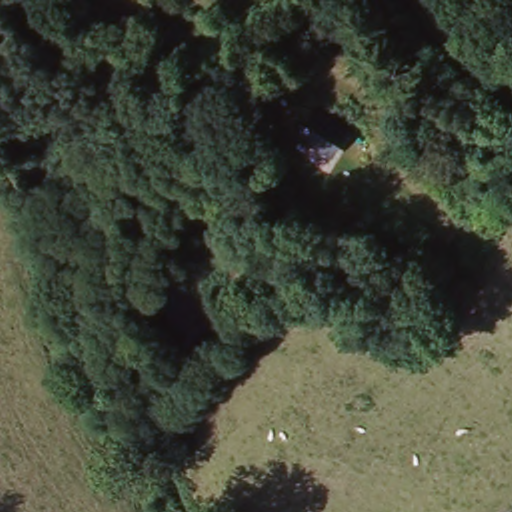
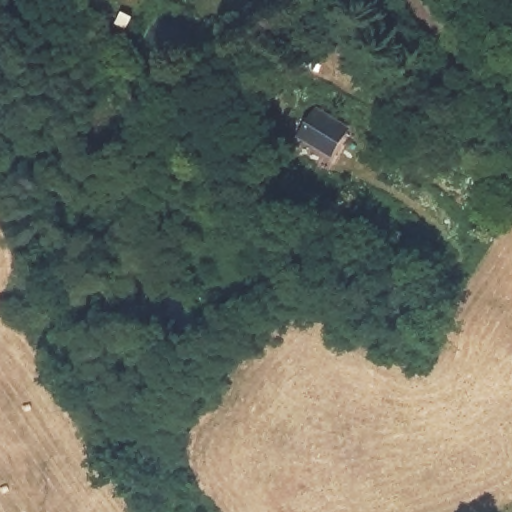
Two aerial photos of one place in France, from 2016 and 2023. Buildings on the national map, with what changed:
unchanged [(315,116),(344,132),(329,159),(301,142),(315,116)]

